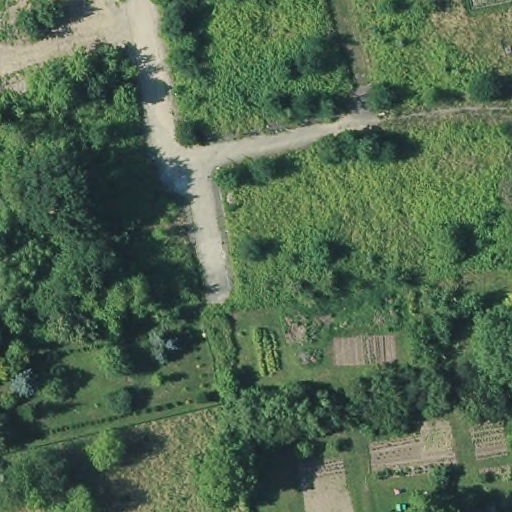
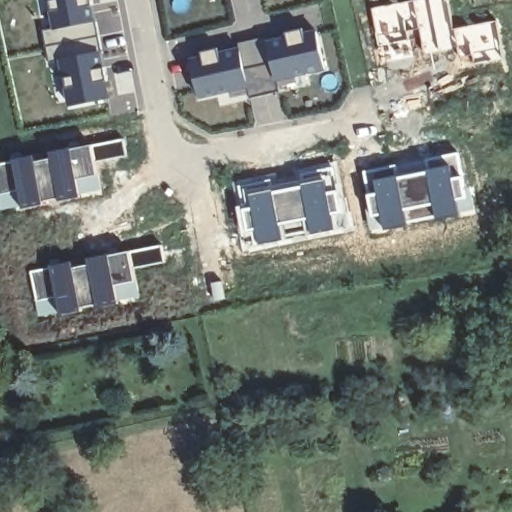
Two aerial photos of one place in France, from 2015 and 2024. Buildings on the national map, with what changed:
new [(95,20),(49,26),(44,0),(90,0),(95,20)]
demolished [(397,25),(379,30),(375,12),(393,8),(397,25)]
new [(49,26),(95,20),(100,49),(55,60),(49,60),(42,28),(49,26)]
new [(316,30),(326,70),(195,102),(185,58),(316,30)]
new [(100,49),(109,98),(66,106),(55,60),(100,49)]
new [(49,155),(48,150),(92,142),(125,137),(128,156),(96,161),(102,193),(58,200),(43,204),(0,211),(0,161),(34,154),(35,159),(49,155)]
new [(461,150),(476,213),(369,233),(362,170),(461,150)]
new [(236,205),(233,181),(337,162),(353,229),(258,246),(242,250),(236,205)]
new [(88,262),(87,257),(161,244),(165,262),(143,266),(139,256),(134,257),(140,297),(81,310),(73,266),(88,262)]
new [(72,260),(73,266),(81,310),(38,317),(29,270),(72,260)]

